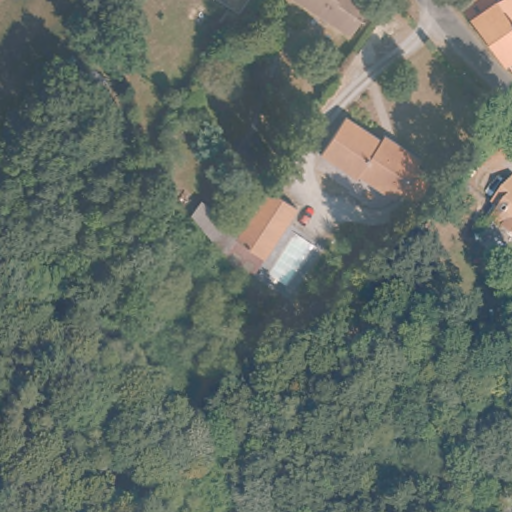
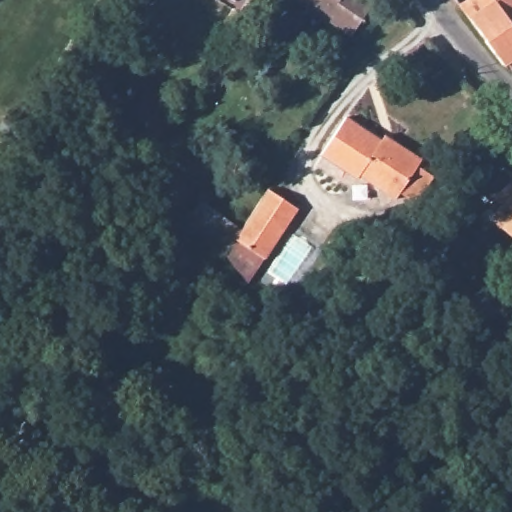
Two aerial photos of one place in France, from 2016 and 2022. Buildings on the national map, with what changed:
unchanged [(356,31),(299,0),(374,0),(356,31)]
unchanged [(487,0),(488,0),(494,12),(512,5),(512,63),(463,10),(487,0)]
unchanged [(512,5),(510,0),(512,0),(512,5)]
unchanged [(414,195),(399,185),(395,191),(352,166),(350,170),(321,151),(346,111),(380,132),(383,127),(421,150),(416,157),(432,166),(414,195)]
unchanged [(506,207),(496,197),(512,181),(512,232),(496,217),(506,207)]
unchanged [(273,185),(302,202),(270,252),(241,234),(273,185)]
unchanged [(235,215),(220,240),(195,212),(205,196),(235,215)]

